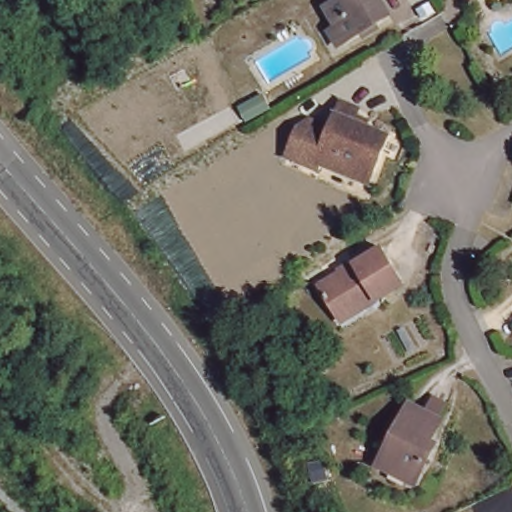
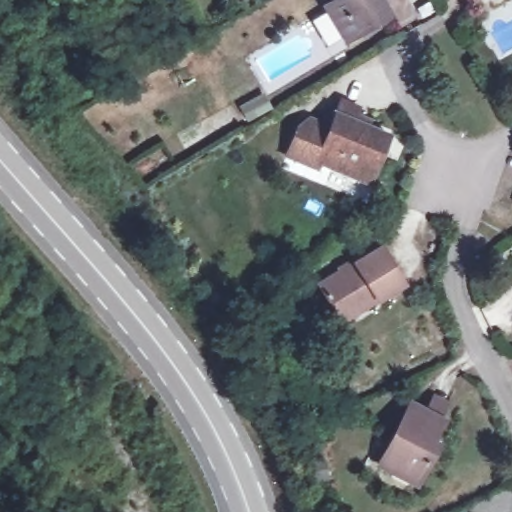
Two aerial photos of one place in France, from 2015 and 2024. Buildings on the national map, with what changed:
unchanged [(337,26),(325,6),(335,0),(381,0),(390,14),(347,40),(339,45),(330,31),(337,26)]
unchanged [(239,106),(247,102),(256,118),(247,122),(239,106)]
unchanged [(350,181),(312,165),(325,135),(336,107),(352,114),(347,125),(382,140),(369,174),(364,186),(350,181)]
unchanged [(312,165),(305,185),(279,174),(294,135),(306,127),(325,135),(312,165)]
unchanged [(335,313),(317,283),(381,245),(403,282),(375,298),(339,320),(335,313)]
unchanged [(417,492),(379,473),(395,441),(390,438),(395,429),(400,432),(409,413),(425,422),(433,406),(447,412),(439,428),(442,430),(431,451),(437,454),(430,467),(417,492)]

